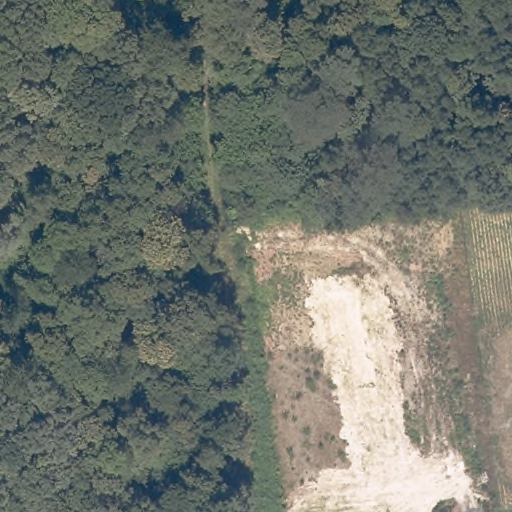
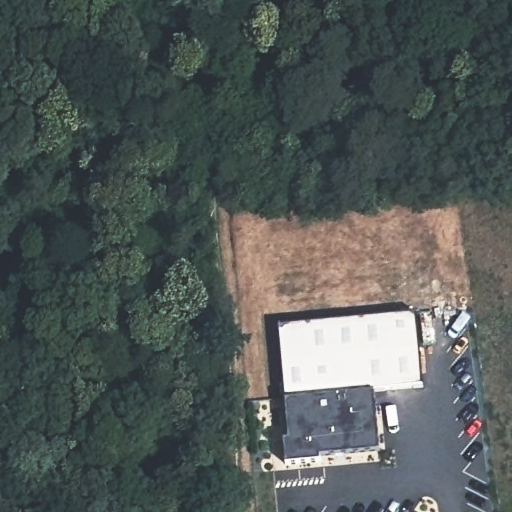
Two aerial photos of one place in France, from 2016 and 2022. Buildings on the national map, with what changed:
new [(416,313),(423,388),(375,392),(380,452),(320,457),(321,462),(286,466),(284,441),(289,440),(278,327),(416,313)]

